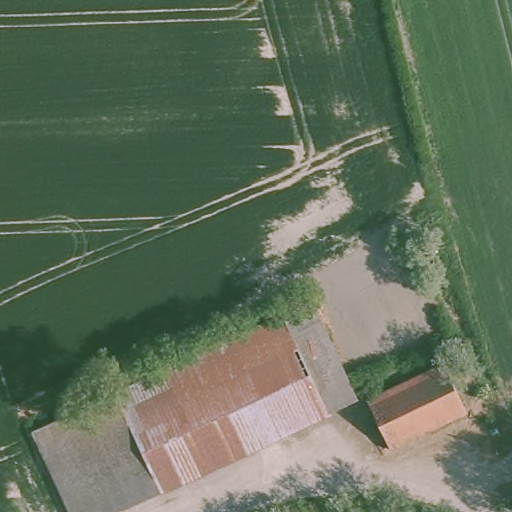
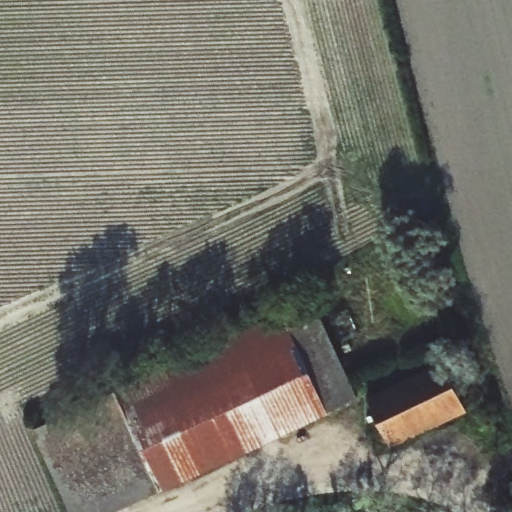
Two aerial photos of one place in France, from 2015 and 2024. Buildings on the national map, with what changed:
unchanged [(114,393),(282,313),(312,301),(359,399),(329,415),(160,492),(117,512),(68,512),(31,432),(114,393)]
unchanged [(465,410),(389,443),(368,398),(445,366),(465,410)]

